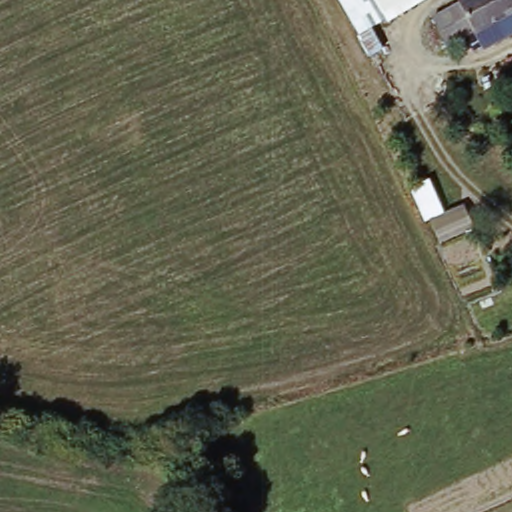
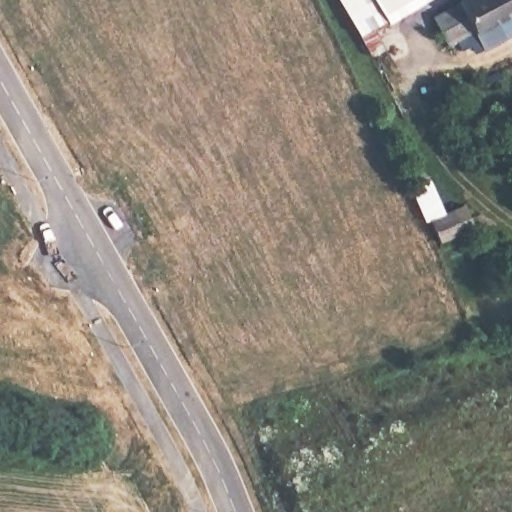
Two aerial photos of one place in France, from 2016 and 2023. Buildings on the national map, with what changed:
unchanged [(388,21),(385,15),(362,26),(345,1),(347,0),(422,0),(388,21)]
unchanged [(480,32),(479,30),(468,36),(454,7),(465,1),(465,0),(466,0),(512,0),(512,38),(489,49),(480,32)]

